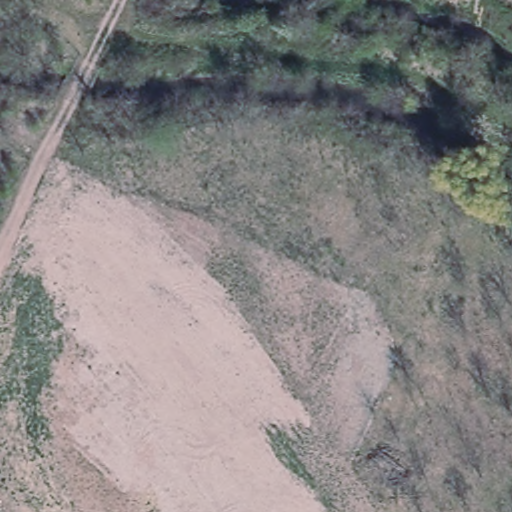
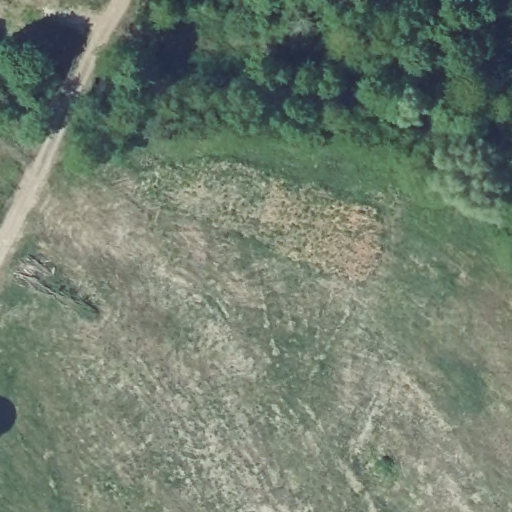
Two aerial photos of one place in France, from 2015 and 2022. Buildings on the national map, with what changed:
[]

